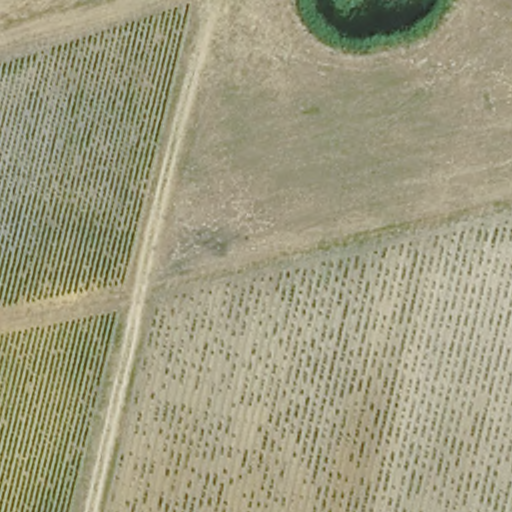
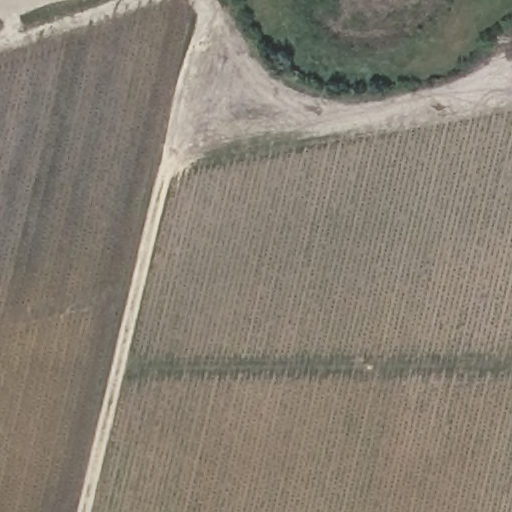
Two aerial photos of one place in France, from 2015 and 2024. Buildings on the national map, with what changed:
[]

